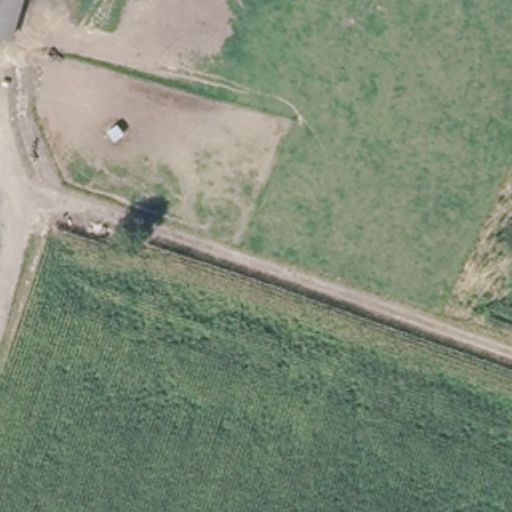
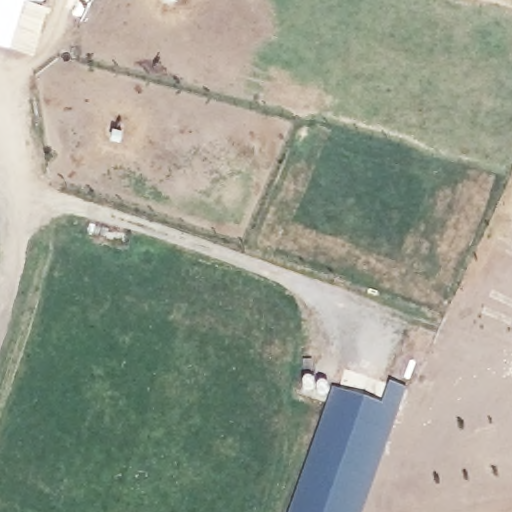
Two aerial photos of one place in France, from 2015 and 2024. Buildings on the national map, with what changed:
new [(0,41),(0,0),(23,0),(8,43),(0,41)]
demolished [(0,43),(0,0),(17,0),(3,44),(0,43)]
new [(30,51),(8,43),(23,0),(39,0),(45,2),(30,51)]
new [(45,2),(39,0),(46,0),(45,2)]
new [(364,512),(290,512),(332,390),(383,409),(390,386),(406,392),(364,512)]

